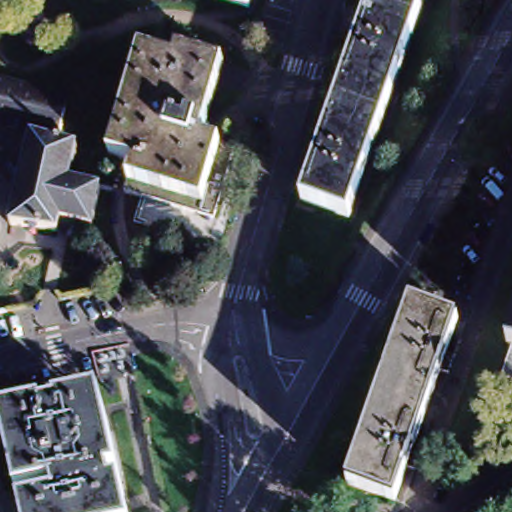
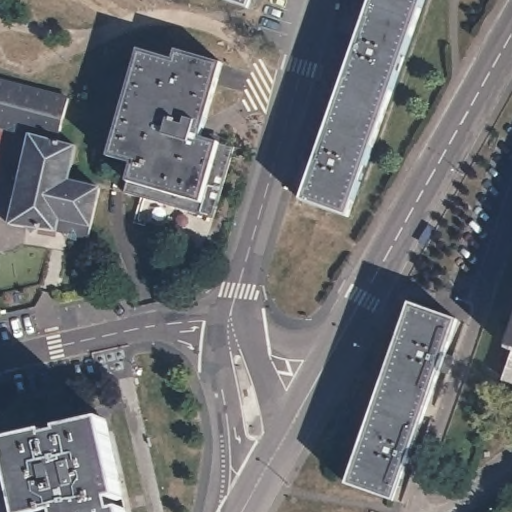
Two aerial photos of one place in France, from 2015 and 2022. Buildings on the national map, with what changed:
unchanged [(249,13),(213,0),(254,0),(249,12),(249,13)]
unchanged [(422,0),(343,222),(297,206),(371,0),(422,0)]
unchanged [(174,61),(175,56),(176,52),(222,67),(221,68),(208,116),(168,104),(125,95),(139,49),(174,61)]
unchanged [(63,100),(53,146),(50,146),(48,145),(23,139),(0,133),(0,84),(63,100)]
unchanged [(125,95),(168,104),(208,116),(201,139),(231,150),(165,133),(116,122),(125,95)]
unchanged [(106,154),(116,122),(165,133),(231,150),(219,187),(106,154)]
unchanged [(78,240),(48,235),(28,232),(25,232),(1,229),(23,139),(48,145),(50,146),(53,146),(70,151),(61,184),(92,192),(87,211),(81,230),(78,240)]
unchanged [(207,222),(119,192),(128,164),(105,156),(106,154),(219,187),(207,222)]
unchanged [(449,324),(456,326),(456,327),(444,360),(453,362),(449,370),(446,380),(438,377),(409,455),(418,457),(419,457),(417,462),(412,475),(404,472),(392,506),(346,489),(410,310),(449,324)]
unchanged [(512,338),(512,350),(508,349),(512,338)]
unchanged [(512,368),(512,382),(508,381),(512,368)]
unchanged [(16,442),(30,438),(65,432),(82,428),(95,425),(96,425),(105,422),(124,512),(21,512),(7,443),(16,442)]

